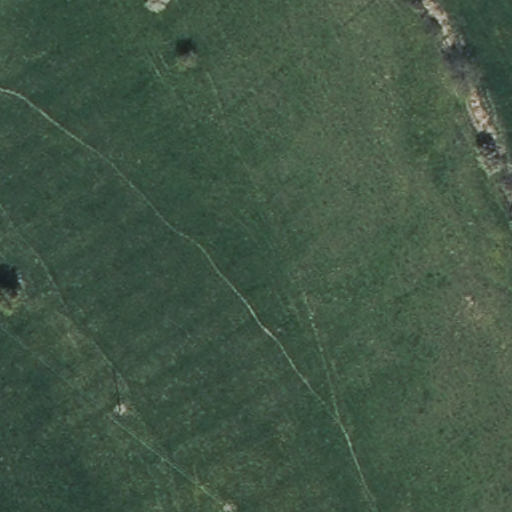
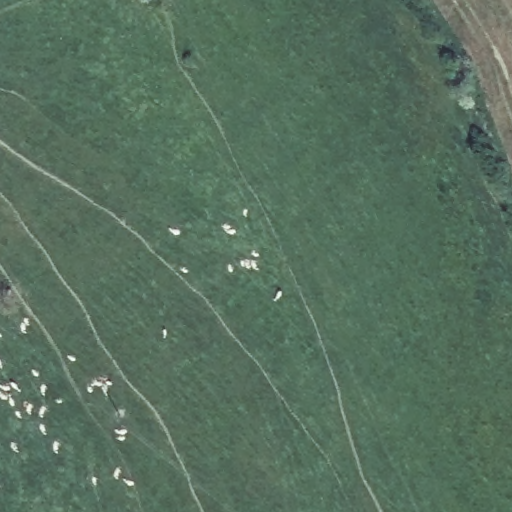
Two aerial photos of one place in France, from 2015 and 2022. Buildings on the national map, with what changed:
[]

